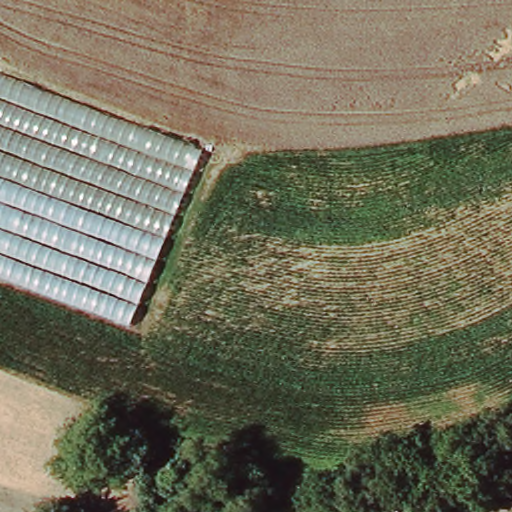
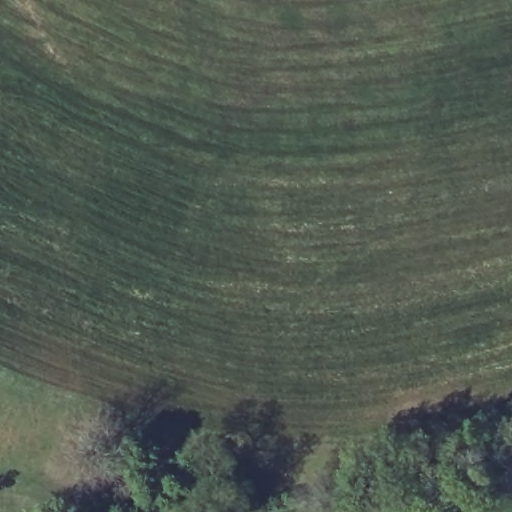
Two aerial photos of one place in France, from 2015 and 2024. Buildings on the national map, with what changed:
demolished [(132,326),(0,276),(0,74),(203,149),(132,326)]

